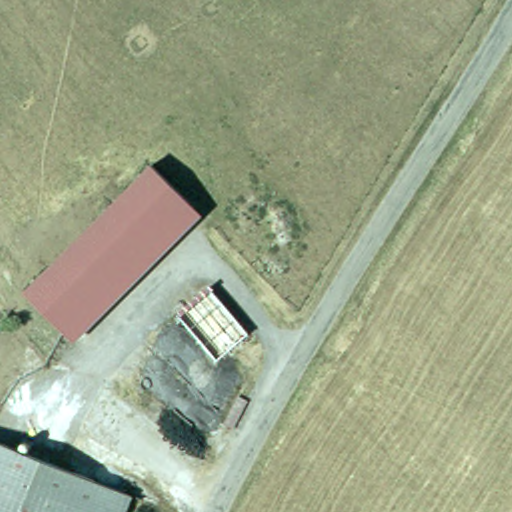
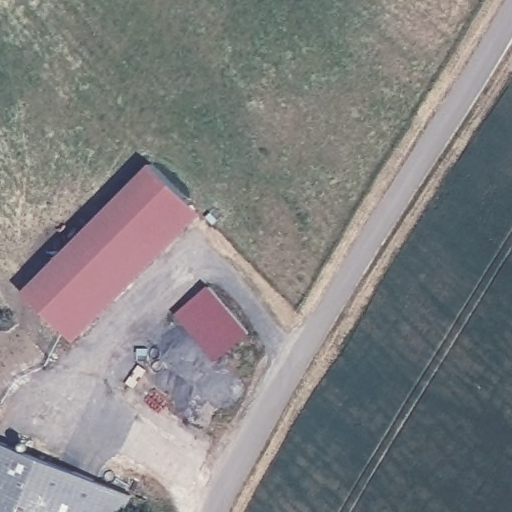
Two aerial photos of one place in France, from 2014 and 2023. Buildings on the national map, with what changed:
unchanged [(23,291),(153,161),(192,203),(63,330),(23,291)]
unchanged [(192,203),(202,213),(74,341),(63,330),(192,203)]
unchanged [(248,329),(215,359),(178,314),(210,285),(248,329)]
unchanged [(123,512),(0,512),(0,440),(130,495),(123,512)]

